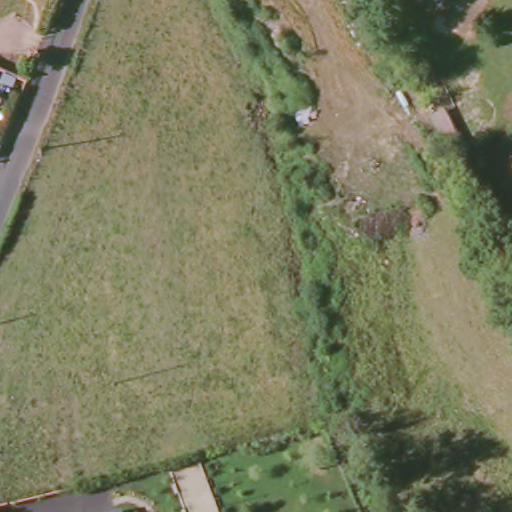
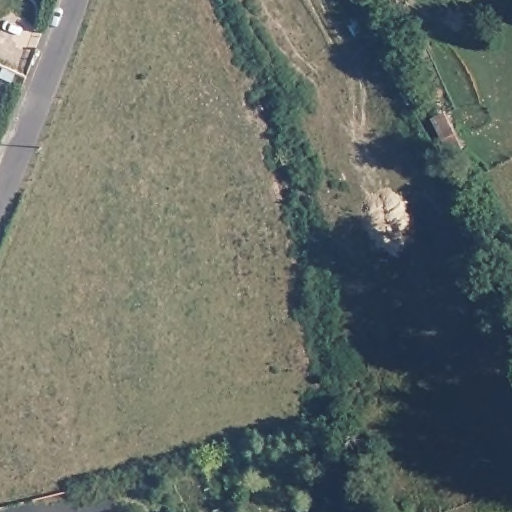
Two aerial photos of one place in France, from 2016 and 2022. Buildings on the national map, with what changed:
unchanged [(372,2),(360,10),(355,0),(370,0),(372,2)]
unchanged [(512,230),(512,246),(497,256),(467,199),(490,187),(512,230)]

